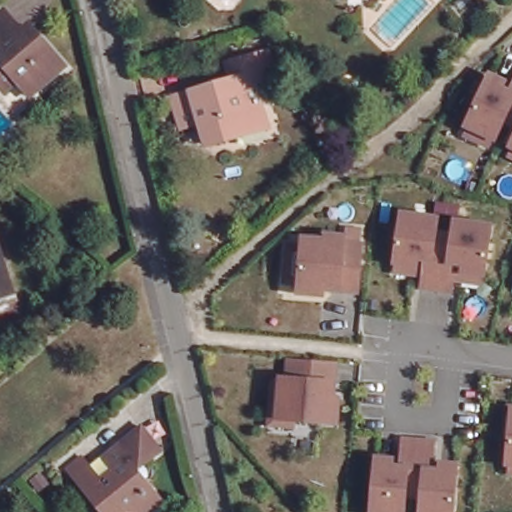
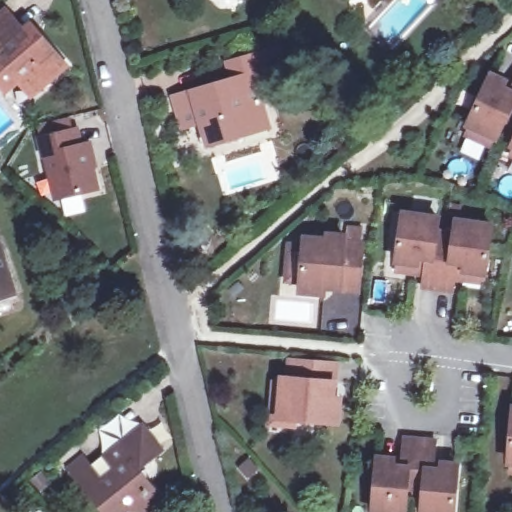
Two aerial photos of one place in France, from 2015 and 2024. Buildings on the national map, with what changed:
unchanged [(14,96),(0,79),(0,28),(15,15),(33,36),(38,31),(49,44),(75,73),(53,90),(40,103),(26,86),(14,96)]
unchanged [(202,124),(188,127),(180,96),(233,81),(227,63),(261,54),(268,81),(256,84),(268,128),(215,143),(207,144),(202,124)]
unchanged [(493,138),(492,138),(488,146),(462,134),(466,125),(465,125),(487,76),(502,84),(508,86),(512,78),(512,126),(501,121),(493,138)]
new [(35,136),(80,127),(83,143),(92,141),(98,168),(95,169),(102,192),(55,202),(45,159),(40,159),(35,136)]
unchanged [(510,145),(509,145),(512,138),(512,157),(507,154),(510,145)]
unchanged [(453,284),(452,296),(419,292),(420,279),(392,276),(393,266),(398,220),(435,224),(434,235),(451,238),(452,227),(488,231),(483,277),(482,287),(453,284)]
unchanged [(4,234),(23,295),(25,302),(18,304),(20,309),(0,315),(0,314),(0,235),(4,234)]
unchanged [(302,242),(323,243),(324,238),(342,239),(342,244),(360,245),(357,289),(323,288),(323,294),(298,292),(298,284),(285,283),(287,248),(302,249),(302,242)]
unchanged [(328,361),(326,394),(332,394),(330,419),(280,416),(282,394),(277,393),(277,375),(282,376),(284,358),(328,361)]
unchanged [(507,461),(505,461),(509,408),(512,408),(512,471),(506,471),(507,461)]
unchanged [(127,510),(124,512),(105,512),(79,479),(80,479),(72,469),(84,459),(92,469),(118,448),(143,427),(162,449),(136,470),(161,502),(148,512),(127,510)]
unchanged [(418,512),(417,511),(418,494),(402,492),(400,510),(398,510),(398,512),(363,512),(363,508),(361,508),(365,454),(388,456),(395,457),(397,434),(431,437),(430,459),(437,460),(453,461),(449,512),(418,512)]

